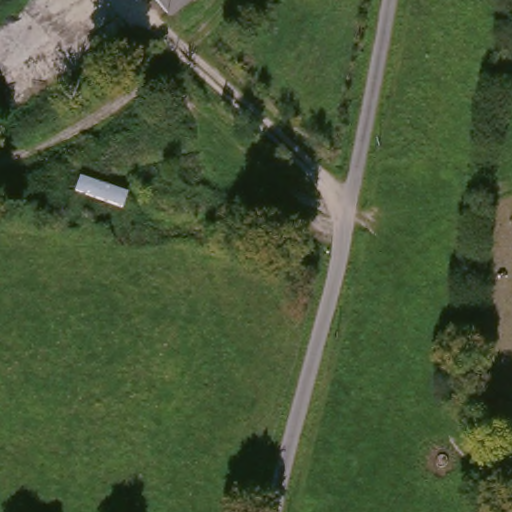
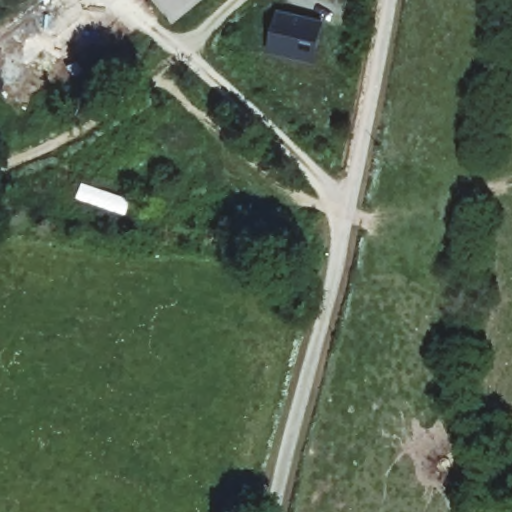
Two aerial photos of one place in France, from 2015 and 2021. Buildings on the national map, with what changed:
unchanged [(171,24),(152,0),(200,0),(171,24)]
new [(327,21),(316,65),(266,52),(277,10),(327,21)]

